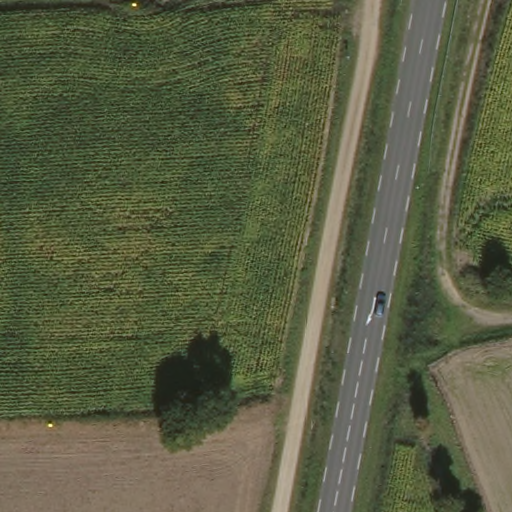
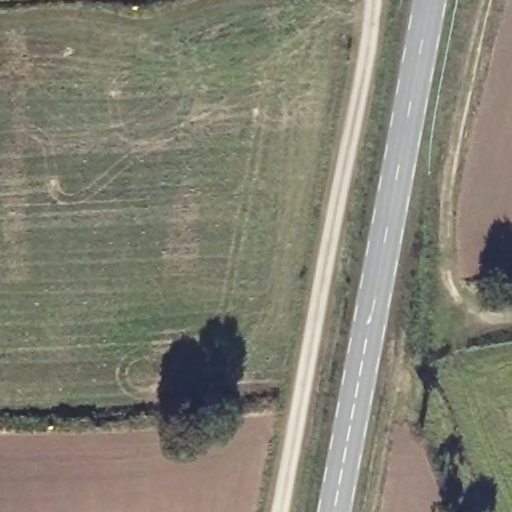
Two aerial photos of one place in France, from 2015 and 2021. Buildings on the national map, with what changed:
[]

